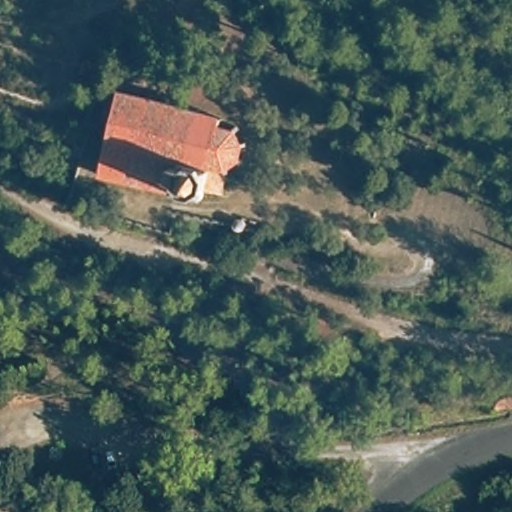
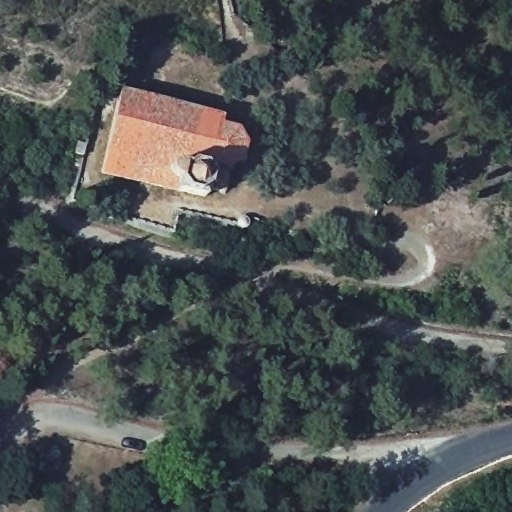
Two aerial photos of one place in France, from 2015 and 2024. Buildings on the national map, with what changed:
unchanged [(105,85),(127,91),(113,138),(93,132),(105,85)]
unchanged [(127,91),(230,121),(229,132),(242,133),(247,138),(249,145),(250,152),(248,159),(245,165),(240,170),(233,169),(227,191),(213,189),(212,202),(105,171),(113,138),(127,91)]

